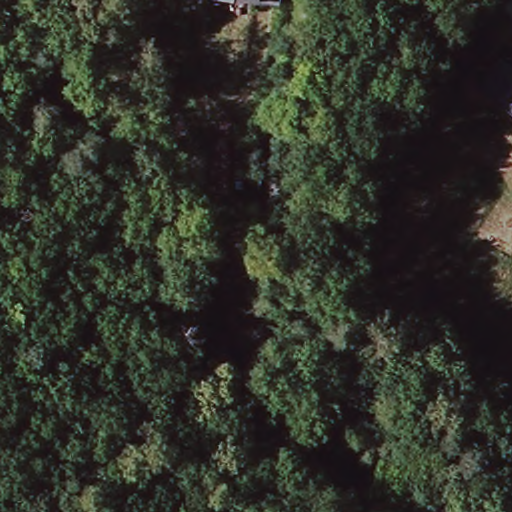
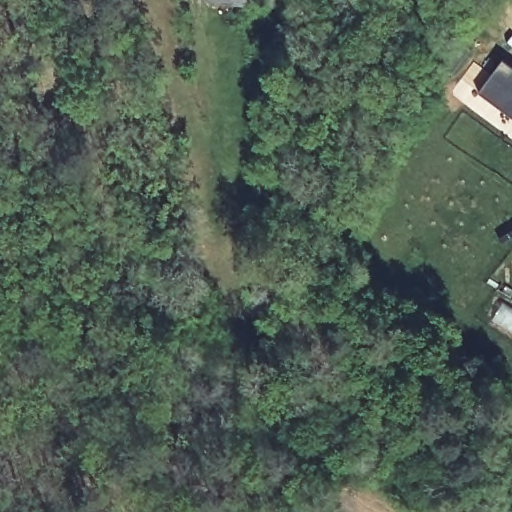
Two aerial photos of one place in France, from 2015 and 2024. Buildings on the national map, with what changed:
unchanged [(249,0),(248,6),(208,0),(249,0)]
unchanged [(248,6),(249,0),(285,0),(283,12),(248,6)]
new [(476,92),(503,56),(512,64),(512,118),(476,92)]

